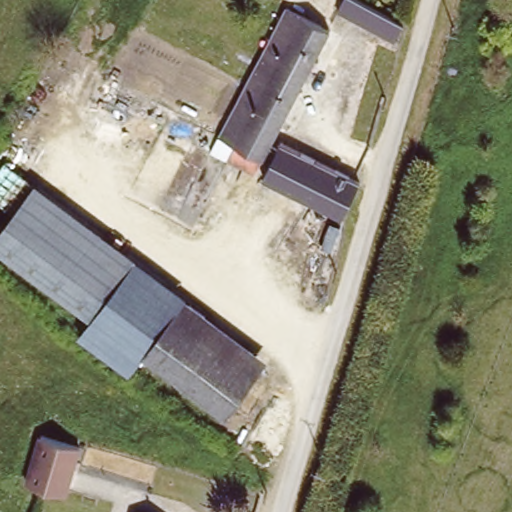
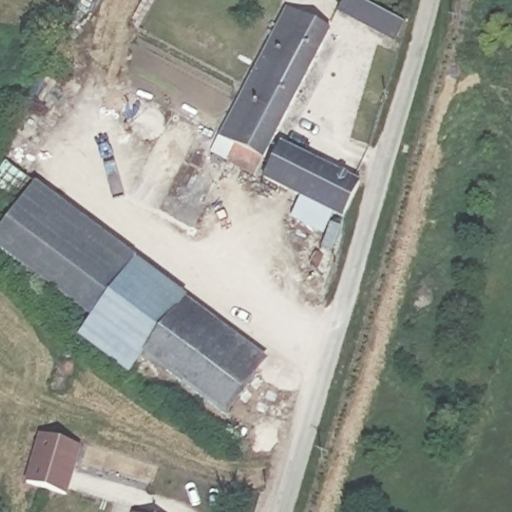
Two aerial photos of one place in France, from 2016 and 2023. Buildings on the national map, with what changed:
unchanged [(376,2),(405,18),(396,34),(370,20),(341,4),(343,0),(372,0),(376,2)]
unchanged [(286,10),(290,12),(327,32),(252,173),(224,159),(231,147),(232,145),(218,137),(286,10)]
unchanged [(358,185),(341,222),(261,182),(280,146),(352,182),(358,185)]
unchanged [(223,420),(145,358),(126,377),(76,339),(88,322),(0,253),(0,230),(35,186),(267,361),(223,420)]
unchanged [(75,452),(61,502),(22,492),(36,441),(75,452)]

